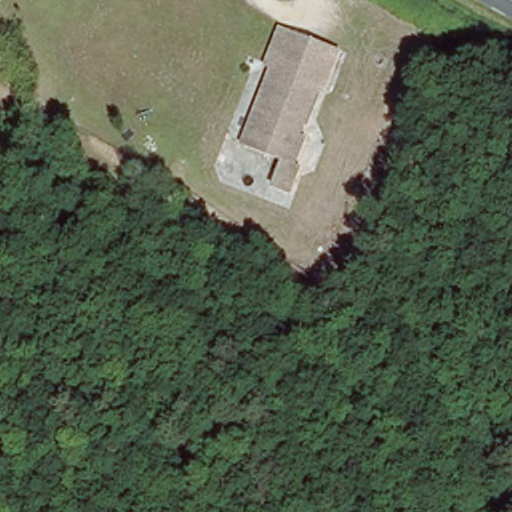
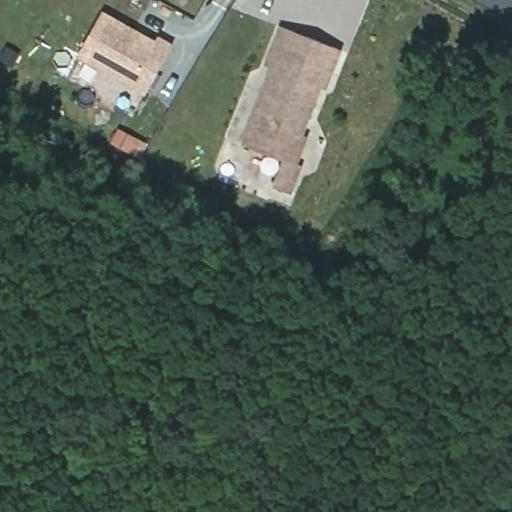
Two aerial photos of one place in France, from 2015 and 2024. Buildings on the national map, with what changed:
new [(76,58),(103,10),(171,47),(144,96),(76,58)]
unchanged [(269,70),(261,67),(278,30),(341,56),(326,92),(320,90),(300,138),(306,142),(294,167),(300,170),(291,194),(273,186),(284,164),(240,145),(269,70)]

